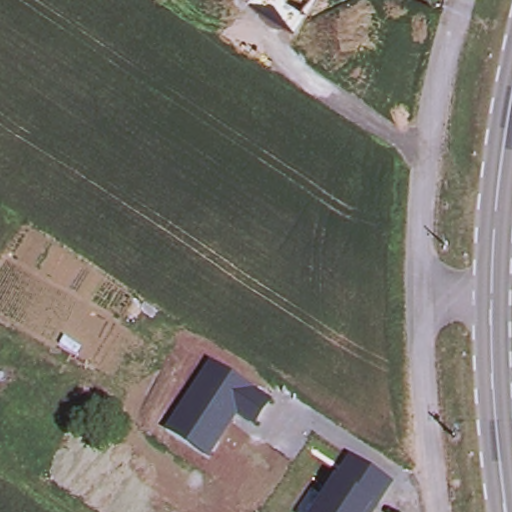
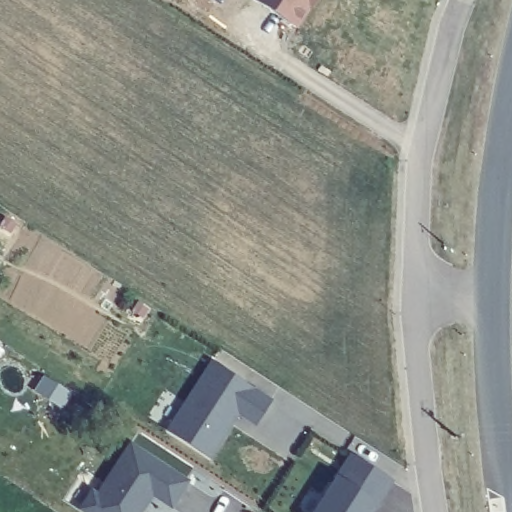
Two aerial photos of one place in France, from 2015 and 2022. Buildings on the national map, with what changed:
unchanged [(294,27),(252,0),(313,0),(294,27)]
unchanged [(208,461),(168,435),(212,366),(271,404),(255,428),(237,417),(232,425),(208,461)]
new [(90,490),(95,492),(128,442),(189,481),(171,511),(153,499),(144,512),(79,512),(78,511),(90,490)]
unchanged [(391,480),(374,506),(370,512),(314,512),(352,454),(391,480)]

